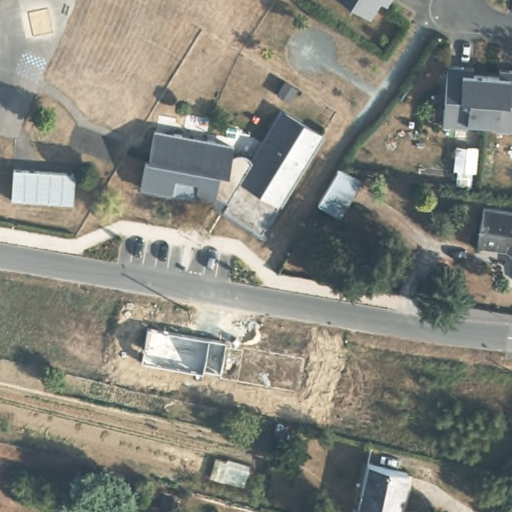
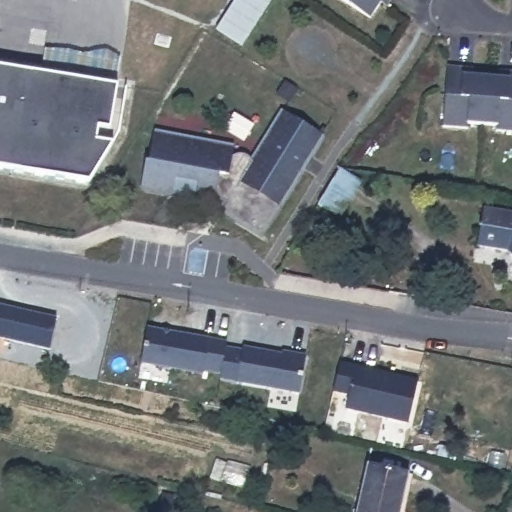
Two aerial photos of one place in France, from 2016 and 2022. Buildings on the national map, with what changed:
unchanged [(217,28),(235,0),(271,0),(243,46),(217,28)]
unchanged [(359,0),(371,0),(368,5),(359,0)]
unchanged [(468,72),(496,74),(496,67),(505,68),(512,69),(512,130),(491,128),(492,119),(464,116),(463,125),(438,123),(444,63),(460,64),(468,65),(468,72)]
new [(113,144),(90,181),(0,166),(0,67),(118,85),(110,130),(113,144)]
unchanged [(137,181),(143,152),(145,153),(152,125),(172,130),(172,125),(176,126),(180,128),(180,131),(204,136),(205,133),(212,135),(212,138),(231,143),(229,149),(231,150),(236,147),(250,153),(269,123),(271,124),(283,107),(321,131),(309,149),(311,150),(304,162),(300,161),(292,173),(295,175),(288,185),(286,184),(256,225),(220,199),(224,191),(213,184),(212,195),(142,182),(137,181)]
demolished [(13,170),(0,170),(0,140),(12,139),(13,170)]
demolished [(75,167),(76,198),(14,200),(13,170),(75,167)]
unchanged [(369,180),(347,215),(327,202),(349,168),(369,180)]
unchanged [(480,243),(486,204),(512,208),(512,250),(503,245),(480,243)]
new [(57,317),(49,349),(0,337),(0,304),(57,317)]
unchanged [(222,374),(205,372),(205,373),(143,363),(149,328),(210,337),(228,340),(222,374)]
new [(227,347),(244,349),(244,345),(305,355),(298,392),(238,382),(221,379),(222,374),(227,347)]
new [(342,361),(419,379),(407,423),(345,409),(349,395),(333,391),(342,361)]
unchanged [(371,463),(411,471),(401,512),(361,512),(371,463)]

